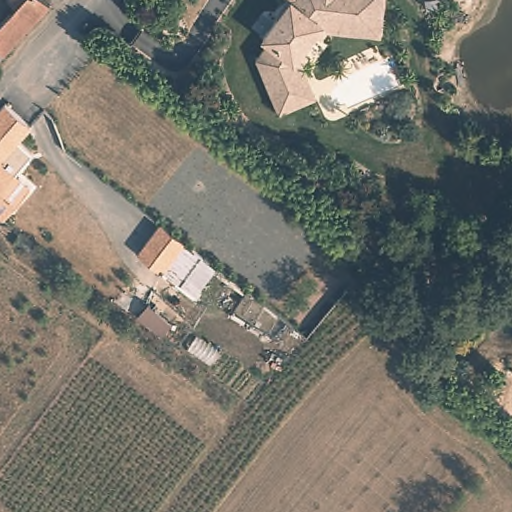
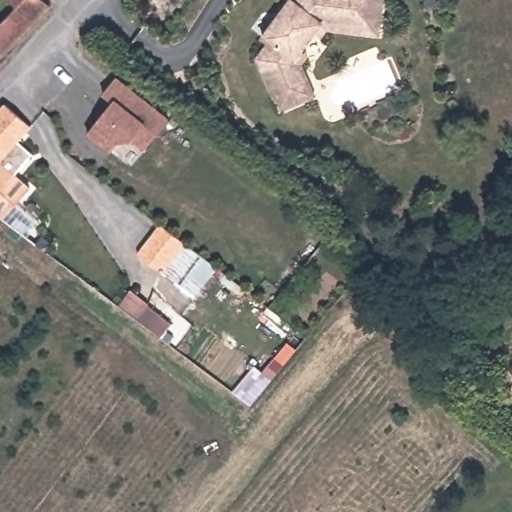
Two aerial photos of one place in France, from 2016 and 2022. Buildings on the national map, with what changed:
unchanged [(9,1),(9,0),(43,0),(50,5),(0,59),(0,25),(16,8),(9,1)]
unchanged [(382,40),(323,28),(302,57),(316,97),(279,112),(258,57),(266,40),(261,36),(290,0),(387,0),(382,40)]
new [(114,101),(104,93),(116,78),(169,119),(145,149),(134,140),(119,142),(111,151),(88,133),(114,101)]
unchanged [(31,126),(0,161),(0,110),(5,104),(31,126)]
unchanged [(0,161),(15,174),(0,191),(0,161)]
unchanged [(162,272),(138,254),(161,224),(185,243),(162,272)]
unchanged [(211,262),(217,267),(195,297),(162,272),(185,243),(211,262)]
unchanged [(137,318),(147,305),(171,323),(161,336),(137,318)]

